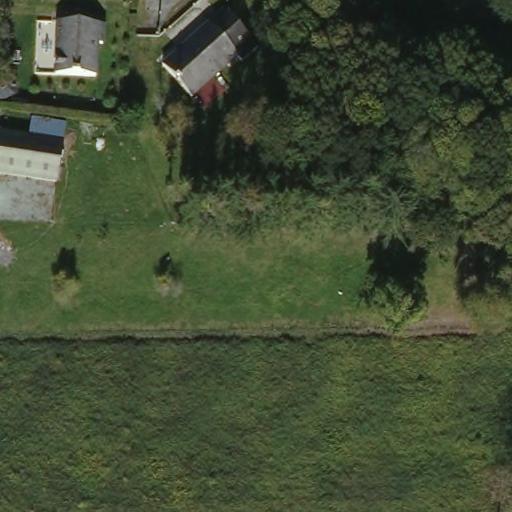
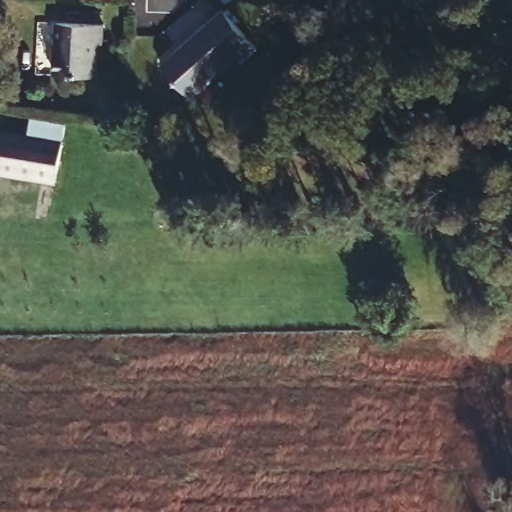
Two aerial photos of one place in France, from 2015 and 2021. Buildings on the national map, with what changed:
unchanged [(252,52),(234,68),(229,63),(186,104),(159,76),(220,19),(252,52)]
unchanged [(105,44),(95,44),(95,77),(56,76),(57,25),(106,25),(105,44)]
unchanged [(58,145),(52,183),(0,175),(0,137),(58,145)]

